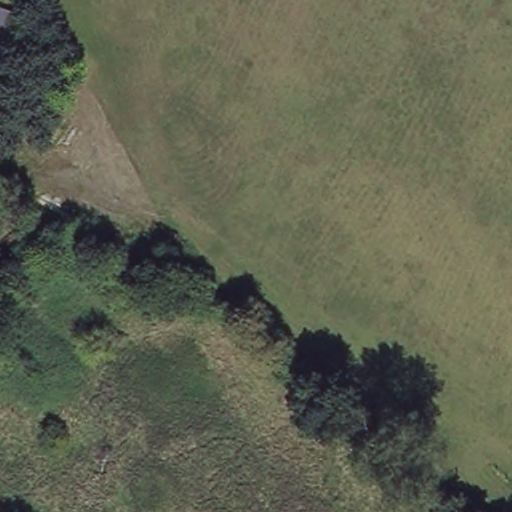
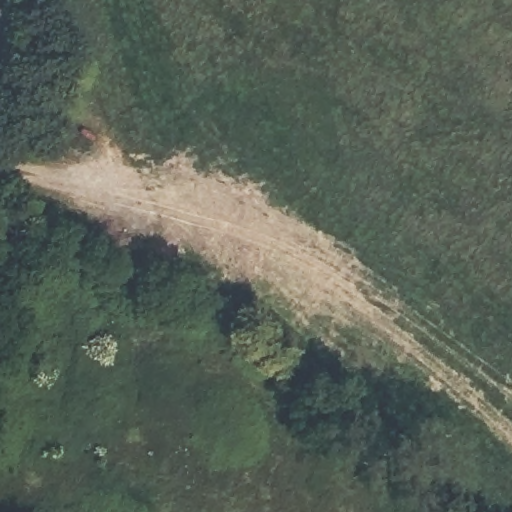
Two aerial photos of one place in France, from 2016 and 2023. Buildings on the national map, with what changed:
unchanged [(20,13),(9,46),(0,44),(0,6),(20,13)]

